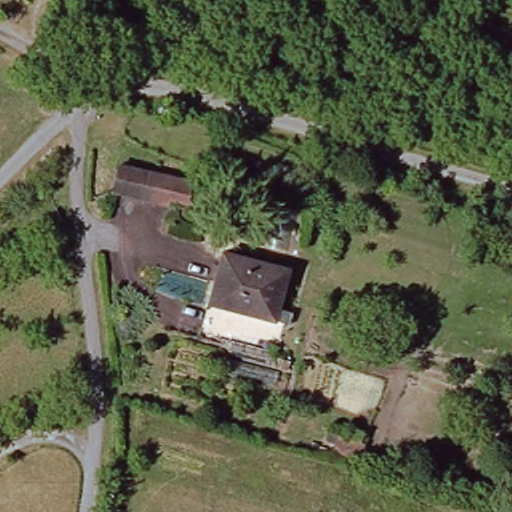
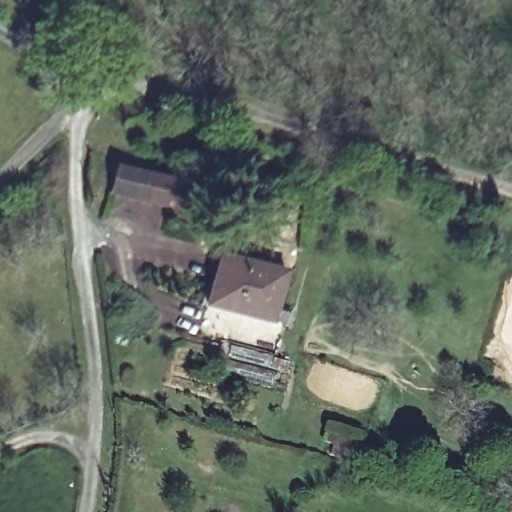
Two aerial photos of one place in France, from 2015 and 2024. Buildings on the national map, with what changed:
unchanged [(376,113),(369,128),(355,124),(360,108),(376,113)]
unchanged [(167,175),(161,204),(111,193),(118,165),(167,175)]
unchanged [(279,321),(212,303),(225,253),(292,271),(279,321)]

